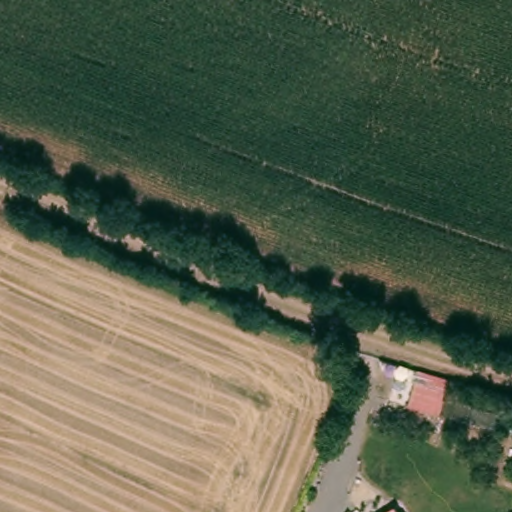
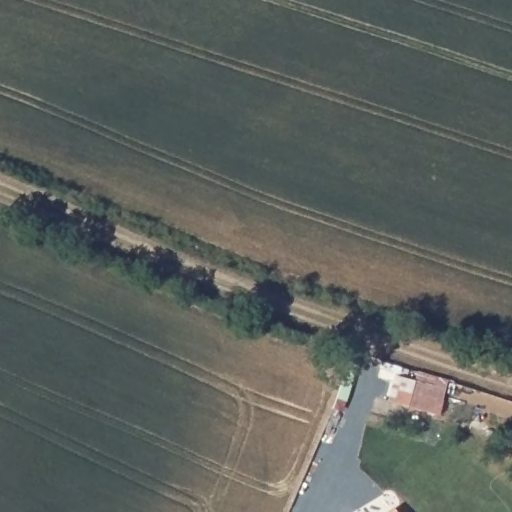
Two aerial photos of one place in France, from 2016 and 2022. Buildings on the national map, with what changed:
unchanged [(399,508),(402,512),(391,512),(399,508)]

